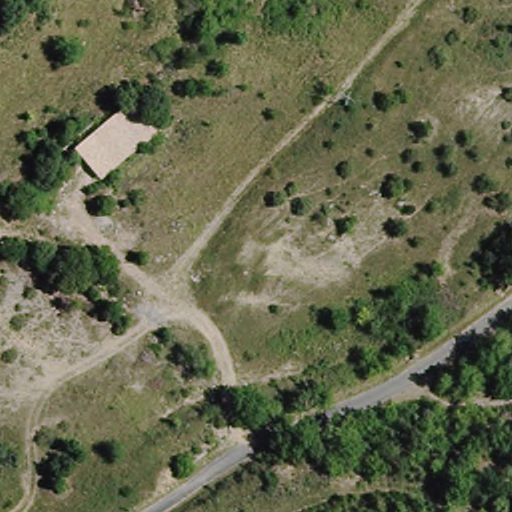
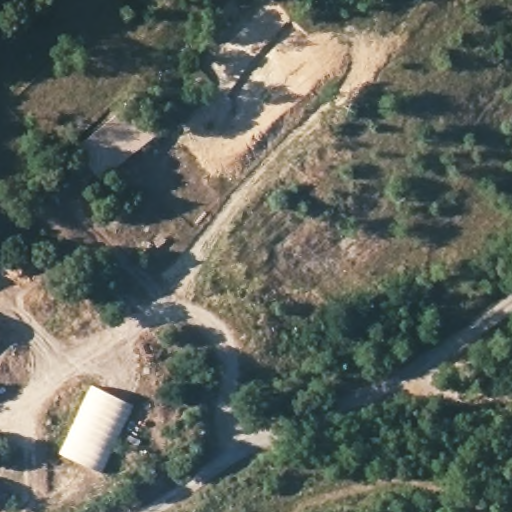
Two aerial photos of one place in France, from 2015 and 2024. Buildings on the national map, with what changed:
unchanged [(77,150),(137,99),(163,130),(102,180),(77,150)]
new [(133,403),(101,471),(60,454),(91,385),(133,403)]

